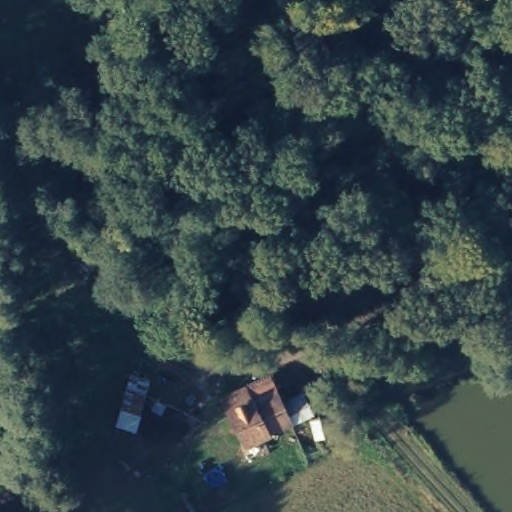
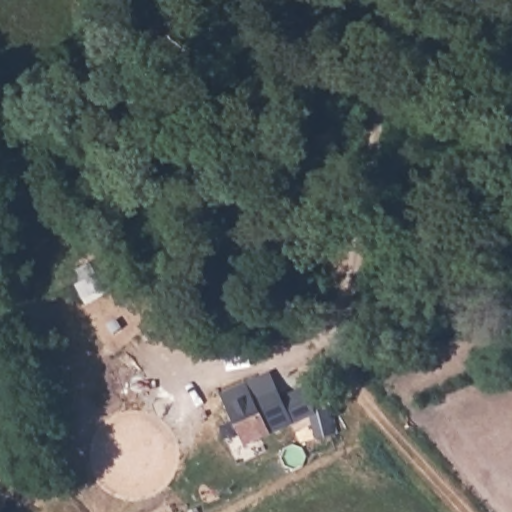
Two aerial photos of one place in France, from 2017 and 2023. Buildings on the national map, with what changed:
unchanged [(277,392),(293,424),(248,445),(231,413),(277,392)]

